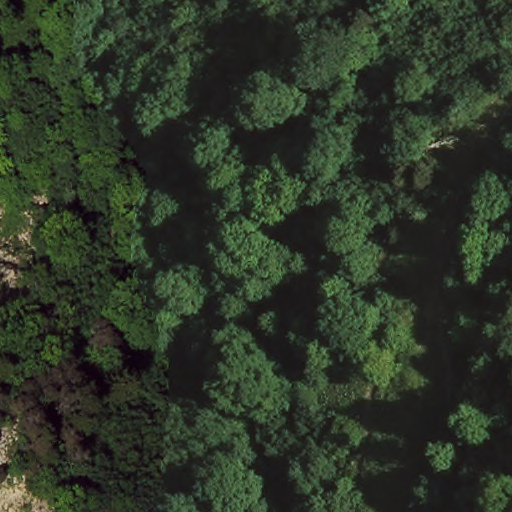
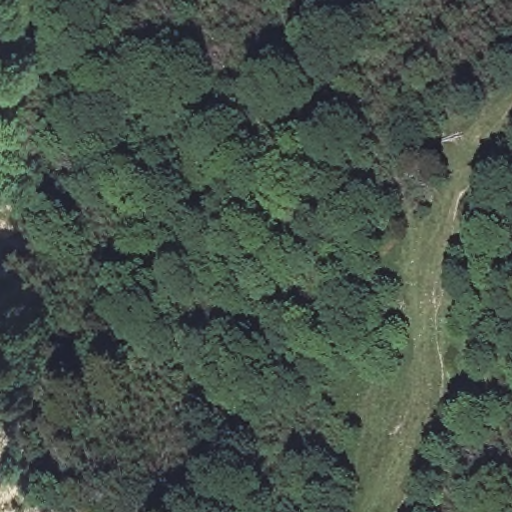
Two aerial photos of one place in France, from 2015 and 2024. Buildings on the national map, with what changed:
[]

